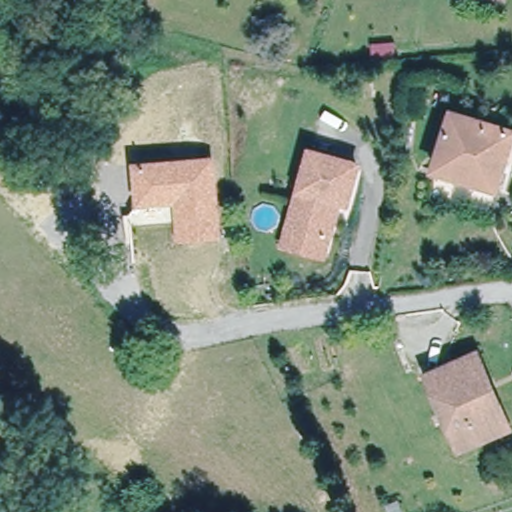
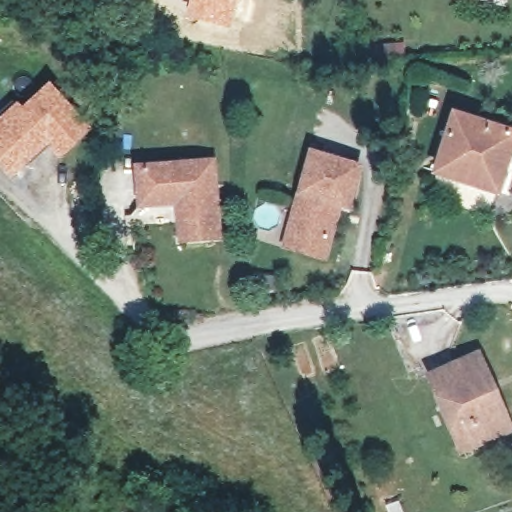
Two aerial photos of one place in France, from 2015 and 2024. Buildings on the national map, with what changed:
new [(188,0),(236,0),(229,29),(184,18),(188,0)]
new [(21,106),(48,80),(92,128),(59,158),(48,147),(11,179),(0,166),(0,116),(17,101),(21,106)]
unchanged [(435,170),(455,114),(512,132),(512,141),(497,190),(435,170)]
unchanged [(283,250),(286,242),(310,158),(357,171),(345,210),(337,207),(326,246),(321,261),(283,250)]
unchanged [(215,159),(221,241),(174,243),(173,207),(133,208),(130,164),(215,159)]
unchanged [(423,374),(471,354),(480,375),(475,377),(488,411),(446,429),(423,374)]
unchanged [(502,429),(454,449),(446,429),(488,411),(475,377),(480,375),(502,429)]

